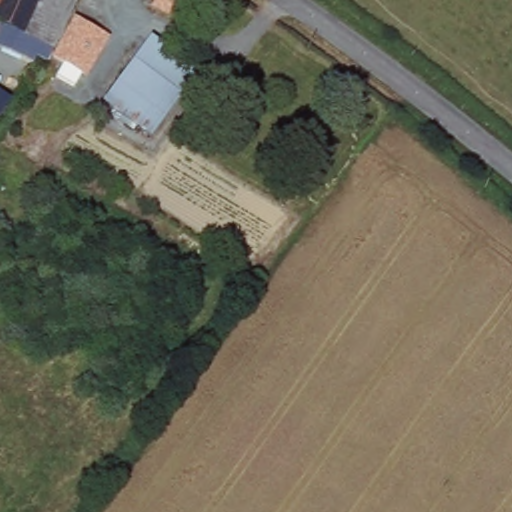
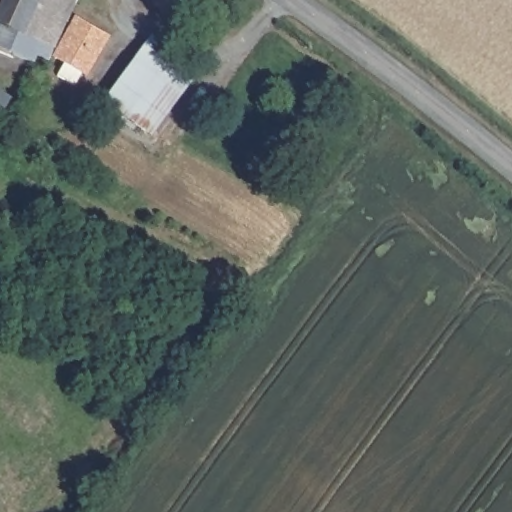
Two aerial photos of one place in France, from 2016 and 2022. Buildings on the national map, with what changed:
unchanged [(35,38),(29,51),(8,41),(12,31),(0,24),(0,0),(75,0),(54,47),(48,44),(35,38)]
unchanged [(157,7),(151,4),(153,0),(176,0),(167,14),(157,7)]
unchanged [(105,37),(86,74),(55,54),(76,21),(105,37)]
unchanged [(148,37),(193,68),(150,137),(100,104),(148,37)]

